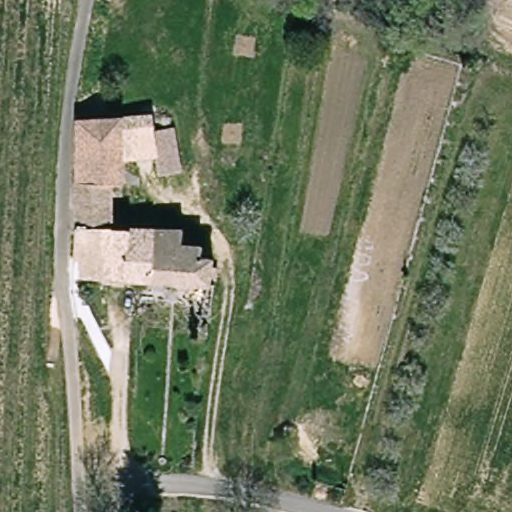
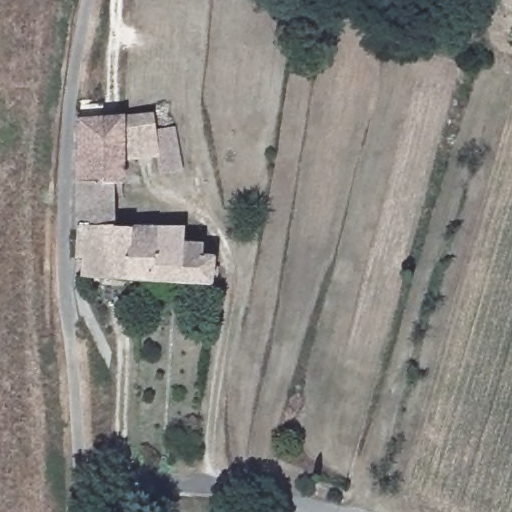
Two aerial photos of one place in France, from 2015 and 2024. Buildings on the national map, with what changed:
unchanged [(159,116),(161,131),(179,129),(187,170),(163,175),(156,140),(124,145),(124,189),(113,190),(115,230),(189,231),(189,244),(207,245),(207,257),(217,258),(217,283),(190,282),(88,276),(89,253),(81,253),(77,133),(77,125),(78,122),(159,116)]

